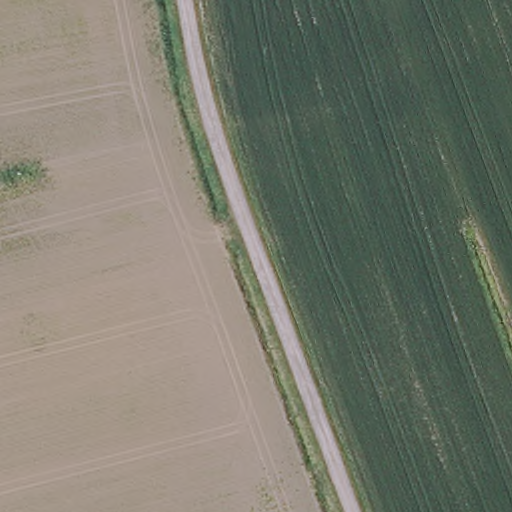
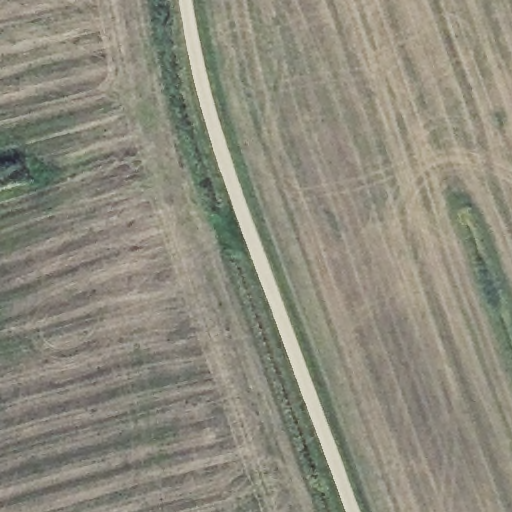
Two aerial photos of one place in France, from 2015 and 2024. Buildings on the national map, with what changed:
[]

